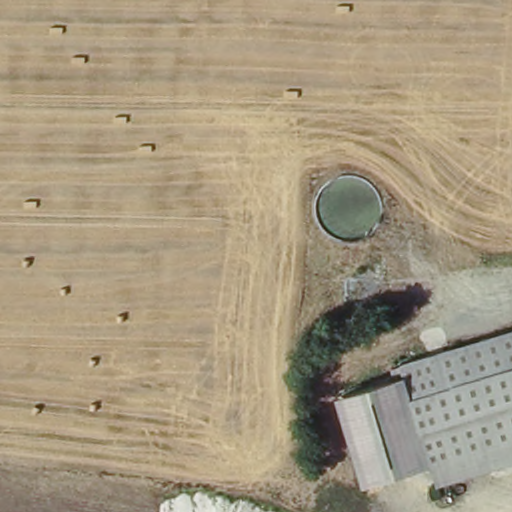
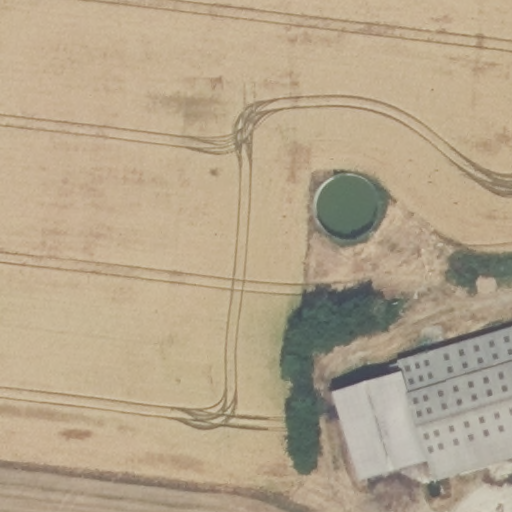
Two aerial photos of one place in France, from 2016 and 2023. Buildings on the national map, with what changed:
unchanged [(512,319),(512,355),(500,360),(489,327),(512,319)]
unchanged [(489,327),(500,360),(401,395),(390,363),(489,327)]
unchanged [(432,480),(401,395),(500,360),(512,355),(512,472),(438,498),(432,480)]
unchanged [(363,485),(336,396),(394,376),(401,395),(426,465),(363,485)]

